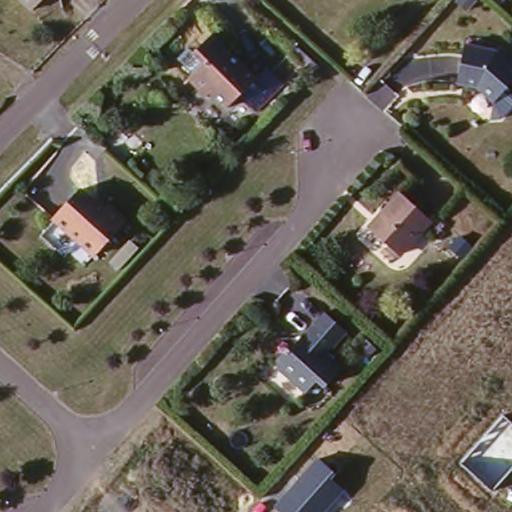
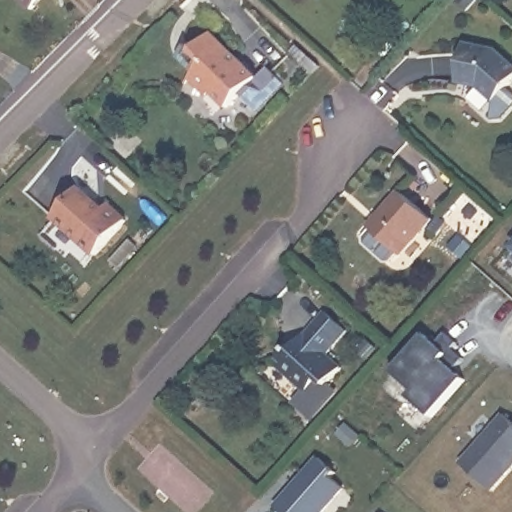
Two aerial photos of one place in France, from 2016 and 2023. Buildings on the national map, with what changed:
unchanged [(25,10),(15,0),(35,0),(25,10)]
unchanged [(257,80),(226,111),(210,95),(206,98),(188,80),(204,65),(194,54),(213,35),(257,80)]
unchanged [(512,60),(512,89),(500,103),(484,88),(463,83),(471,43),(501,51),(512,60)]
unchanged [(434,222),(402,258),(372,230),(403,194),(434,222)]
unchanged [(103,218),(108,212),(126,228),(94,263),(53,226),(80,197),(103,218)]
unchanged [(345,331),(324,354),(339,367),(323,385),(315,378),(303,390),(274,365),(274,357),(285,345),(288,348),(322,311),(345,331)]
new [(426,331),(437,341),(447,330),(458,341),(414,388),(392,368),(426,331)]
new [(453,346),(464,357),(454,368),(465,377),(431,414),(409,393),(414,388),(453,346)]
unchanged [(512,469),(492,492),(460,463),(503,416),(512,424),(512,469)]
unchanged [(334,473),(330,479),(343,491),(327,512),(280,512),(274,507),(317,459),(334,473)]

